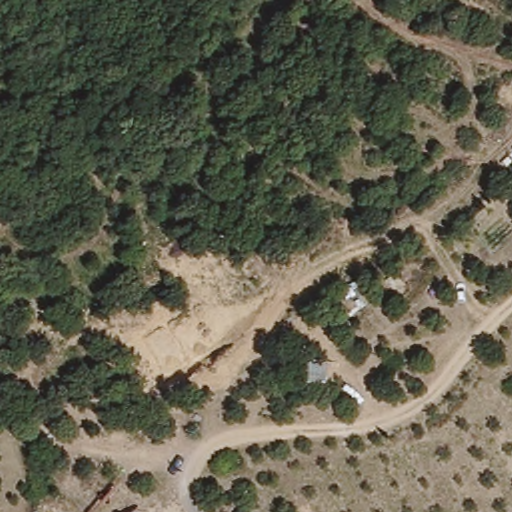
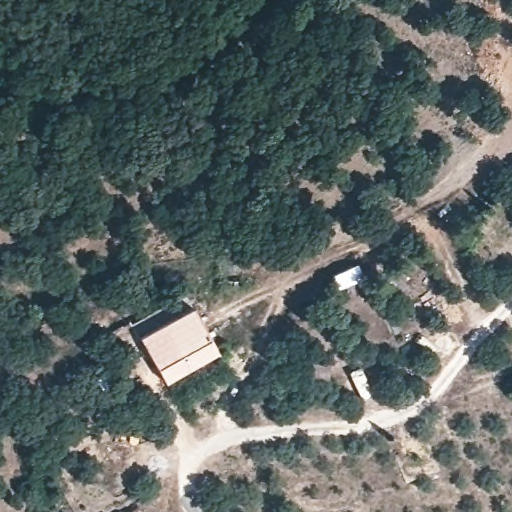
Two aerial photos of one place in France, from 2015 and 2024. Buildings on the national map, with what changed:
new [(192,307),(218,352),(165,381),(138,335),(192,307)]

